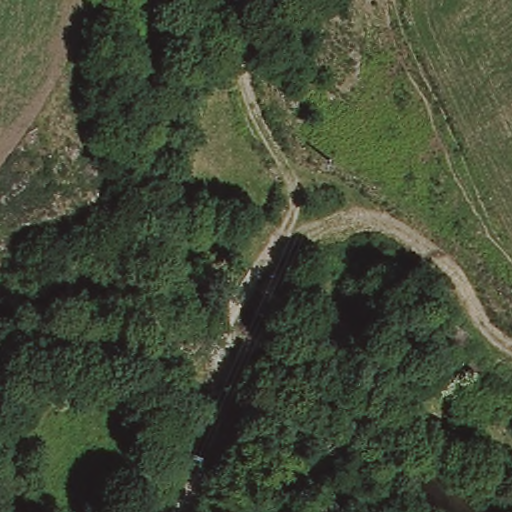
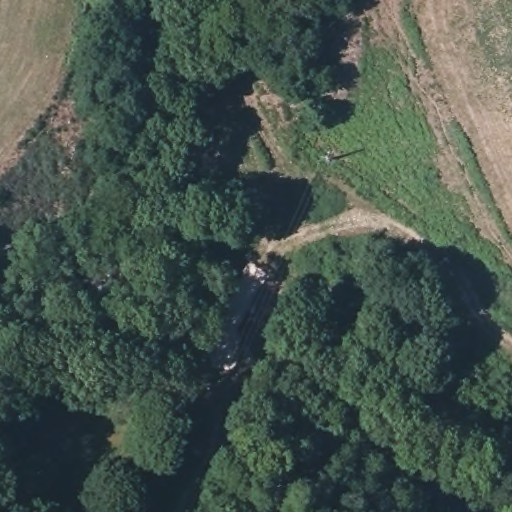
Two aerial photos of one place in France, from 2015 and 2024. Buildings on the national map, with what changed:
unchanged [(157,455),(138,450),(149,422),(165,427),(157,455)]

